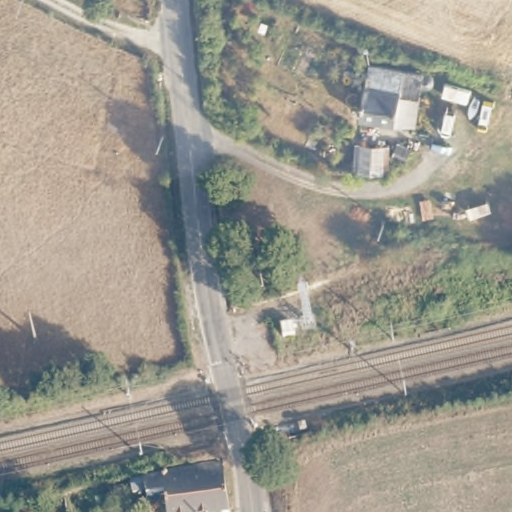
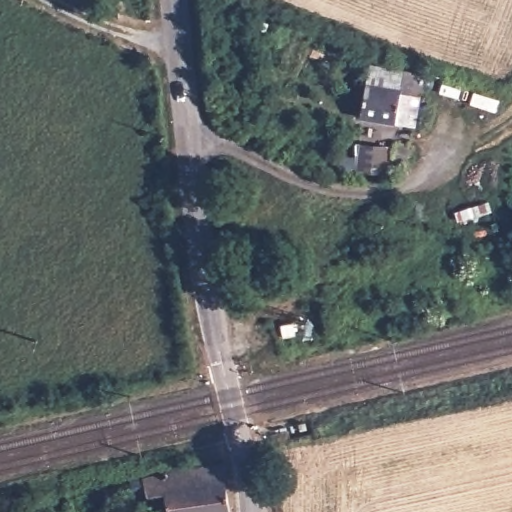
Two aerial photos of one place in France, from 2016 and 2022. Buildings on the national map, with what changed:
unchanged [(438,87),(422,86),(418,121),(364,116),(370,64),(440,77),(438,87)]
unchanged [(392,151),(396,139),(411,144),(406,157),(392,151)]
unchanged [(385,171),(360,170),(362,144),(390,146),(385,171)]
unchanged [(229,511),(220,512),(168,512),(164,490),(147,492),(146,486),(132,487),(130,477),(220,461),(229,511)]

